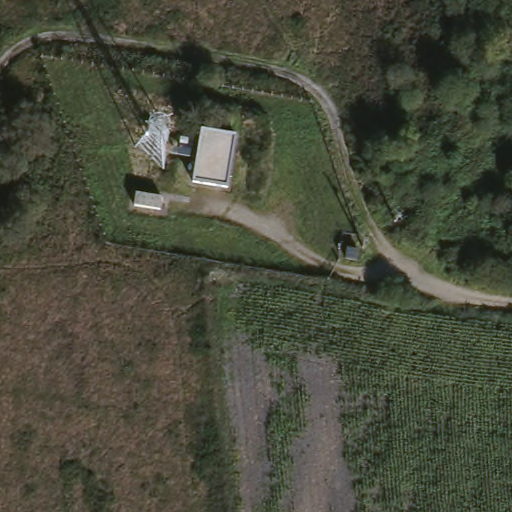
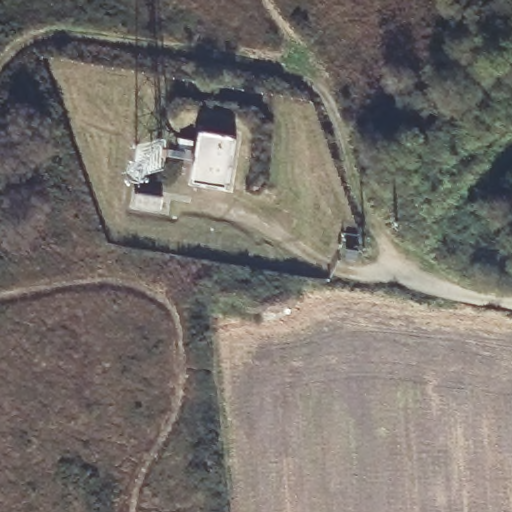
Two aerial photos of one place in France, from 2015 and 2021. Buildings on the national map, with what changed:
unchanged [(232,136),(227,193),(192,191),(195,134),(232,136)]

